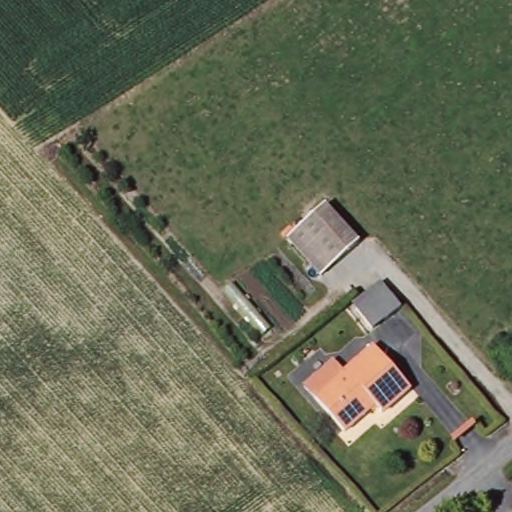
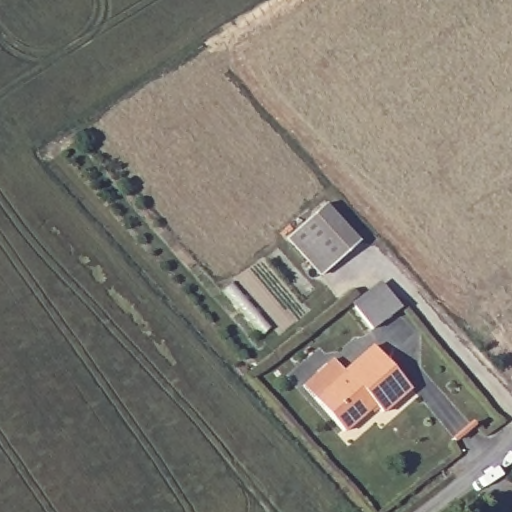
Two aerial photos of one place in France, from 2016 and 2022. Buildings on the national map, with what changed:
unchanged [(362,241),(324,275),(290,240),(328,203),(362,241)]
unchanged [(368,325),(351,305),(379,282),(396,302),(368,325)]
unchanged [(410,388),(382,415),(373,406),(344,434),(303,391),(333,363),(343,374),(371,348),(410,388)]

